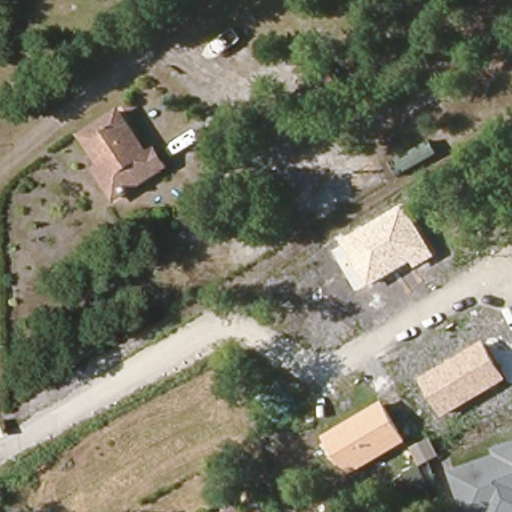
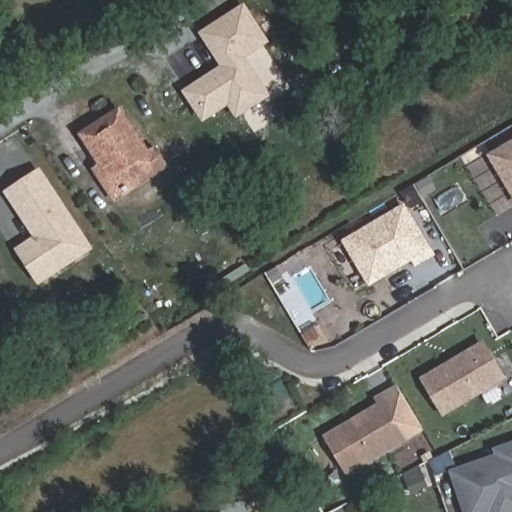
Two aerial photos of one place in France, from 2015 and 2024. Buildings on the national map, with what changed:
new [(226,64),(205,32),(245,5),(267,39),(243,55),(268,93),(239,112),(230,100),(205,116),(188,89),(226,64)]
unchanged [(167,162),(152,172),(118,195),(99,167),(111,159),(102,146),(97,150),(85,132),(122,108),(151,152),(157,148),(167,162)]
new [(512,141),(512,196),(488,156),(512,141)]
new [(76,256),(40,279),(20,248),(39,237),(9,191),(40,170),(78,229),(90,247),(76,256)]
unchanged [(413,267),(408,261),(365,288),(335,240),(403,201),(435,254),(413,267)]
unchanged [(443,415),(422,376),(482,340),(505,378),(443,415)]
unchanged [(344,474),(323,437),(383,402),(405,440),(344,474)]
unchanged [(451,472),(496,456),(494,447),(512,442),(512,512),(465,512),(451,472)]

